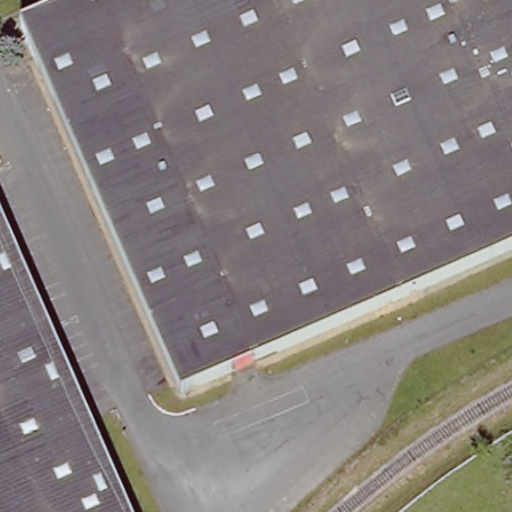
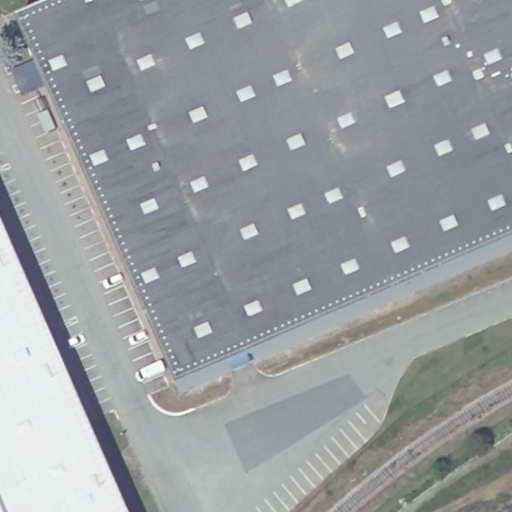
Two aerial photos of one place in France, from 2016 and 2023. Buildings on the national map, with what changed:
unchanged [(88,0),(512,0),(512,253),(433,287),(177,398),(25,47),(17,30),(32,24),(40,20),(88,0)]
unchanged [(125,512),(0,512),(0,228),(125,512)]

